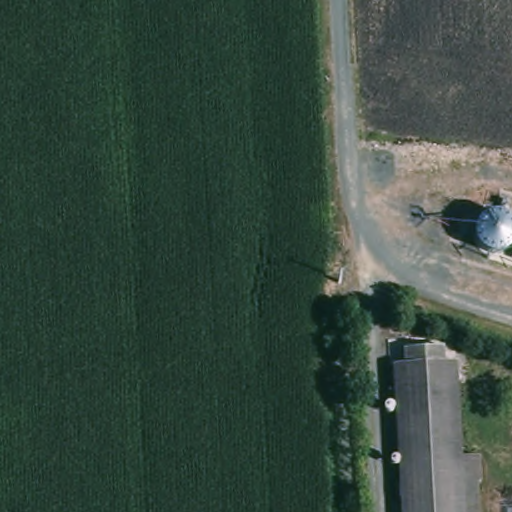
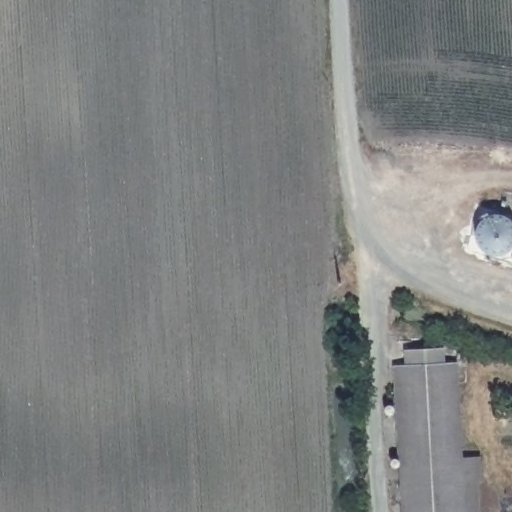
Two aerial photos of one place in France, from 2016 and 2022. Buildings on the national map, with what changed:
unchanged [(481,251),(476,244),(475,237),(475,229),(478,221),(483,215),(493,213),(503,214),(510,219),(512,221),(512,248),(507,252),(500,255),(491,256),(485,254),(481,251)]
unchanged [(391,369),(456,365),(461,460),(481,460),(483,512),(400,512),(391,369)]

